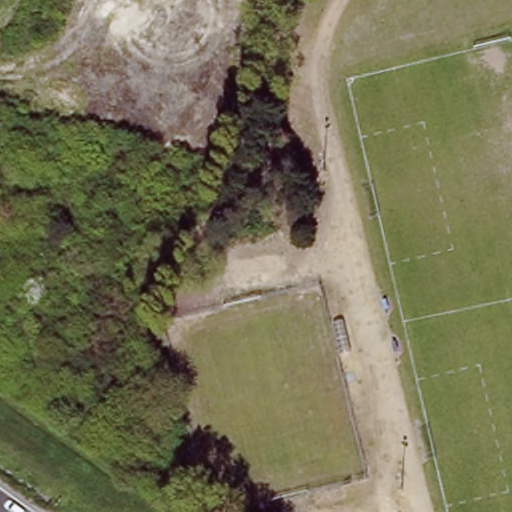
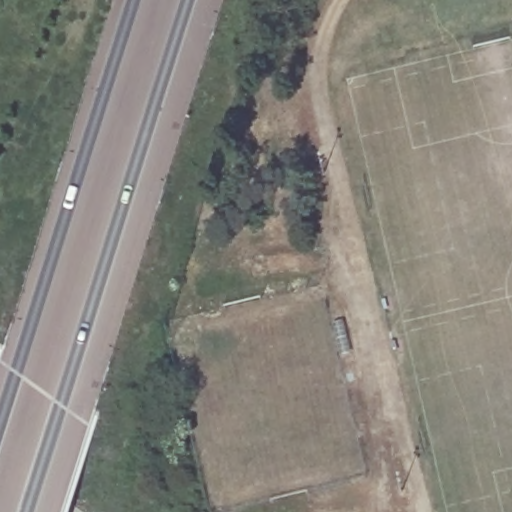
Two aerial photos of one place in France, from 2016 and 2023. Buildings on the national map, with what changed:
[]

